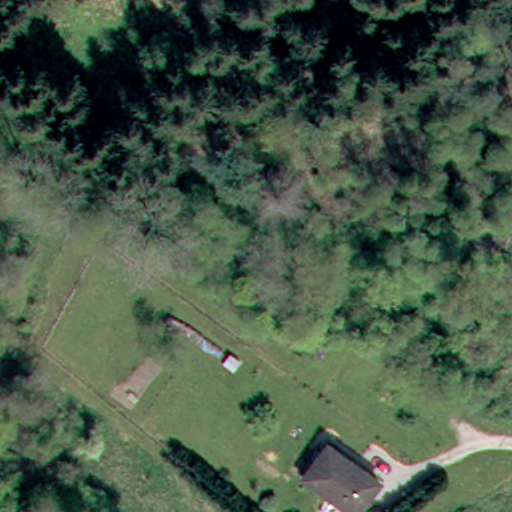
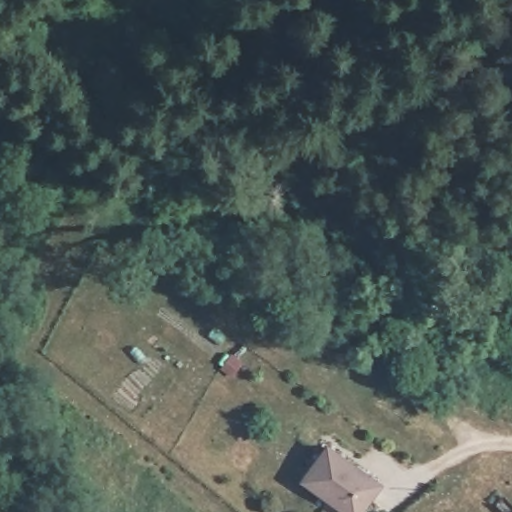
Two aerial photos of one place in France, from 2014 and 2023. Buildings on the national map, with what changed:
unchanged [(362,512),(350,512),(307,481),(332,447),(382,484),(362,512)]

